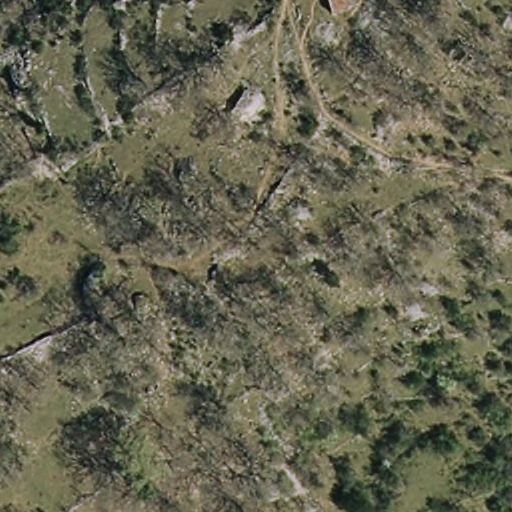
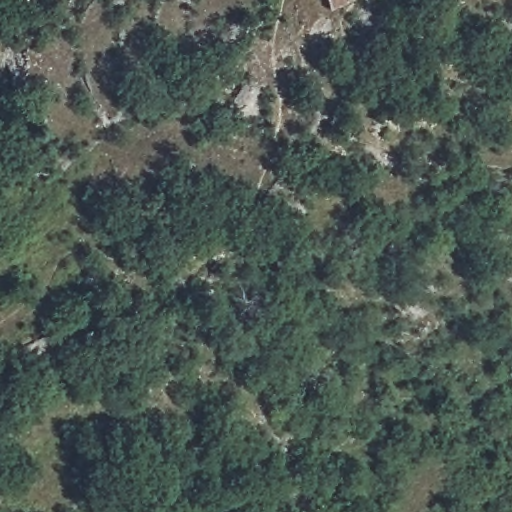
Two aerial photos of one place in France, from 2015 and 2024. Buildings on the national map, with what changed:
unchanged [(350,3),(332,6),(329,0),(350,0),(350,3)]

